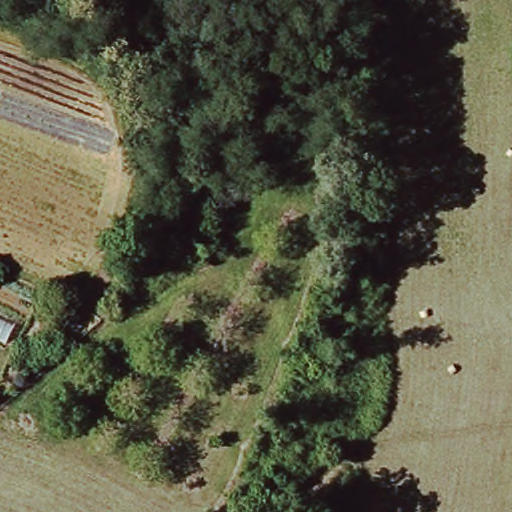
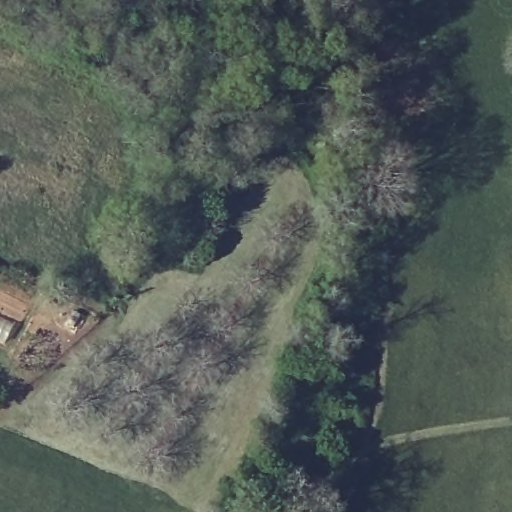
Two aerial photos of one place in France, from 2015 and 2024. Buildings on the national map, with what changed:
unchanged [(190,253),(155,235),(178,188),(198,198),(182,230),(197,239),(190,253)]

